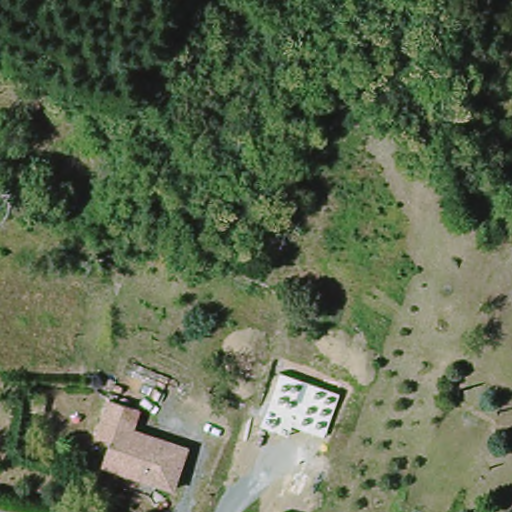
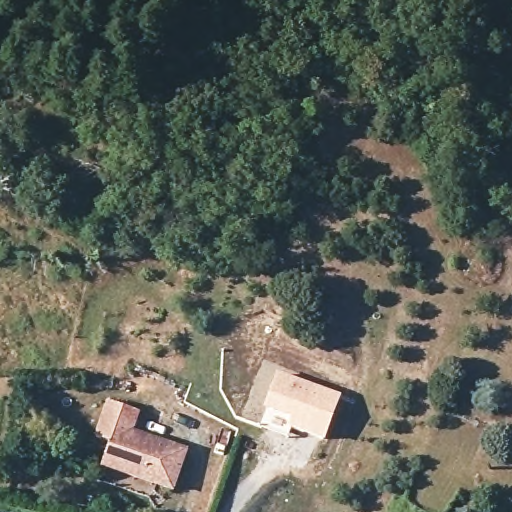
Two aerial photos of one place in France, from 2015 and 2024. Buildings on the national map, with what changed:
unchanged [(279,375),(338,397),(324,439),(291,427),(286,437),(261,427),(279,375)]
unchanged [(114,440),(101,435),(113,396),(148,409),(143,433),(198,446),(183,491),(106,466),(114,440)]

